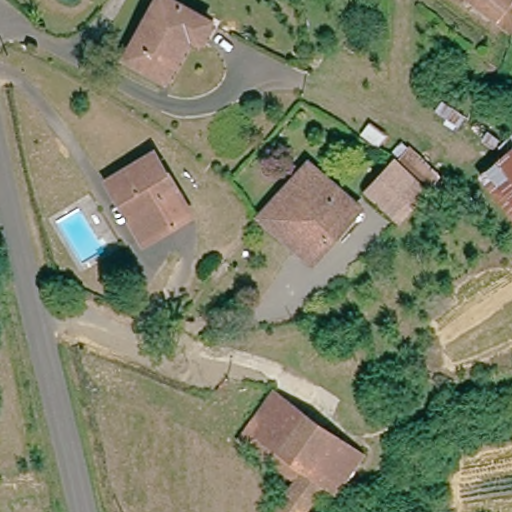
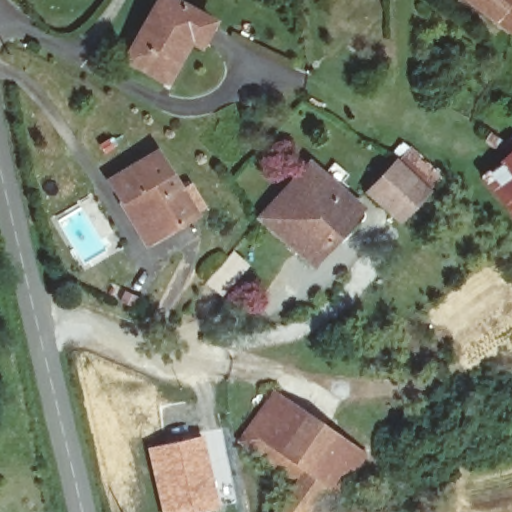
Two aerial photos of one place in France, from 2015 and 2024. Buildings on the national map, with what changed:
unchanged [(187,42),(164,84),(126,63),(162,0),(165,0),(211,26),(199,49),(187,42)]
unchanged [(466,0),(512,0),(512,18),(498,33),(466,0)]
unchanged [(126,209),(111,183),(159,154),(192,209),(152,233),(141,239),(126,209)]
unchanged [(373,194),(399,162),(408,154),(439,180),(431,190),(405,222),(373,194)]
unchanged [(483,182),(512,158),(512,218),(483,182)]
unchanged [(281,203),(312,169),(361,208),(314,264),(263,222),(281,203)]
unchanged [(284,449),(261,424),(289,397),(310,420),(284,449)]
unchanged [(355,464),(325,491),(284,449),(310,420),(355,464)]
new [(222,427),(236,502),(222,506),(201,433),(222,427)]
new [(201,433),(222,506),(222,508),(205,512),(159,512),(146,447),(201,433)]

